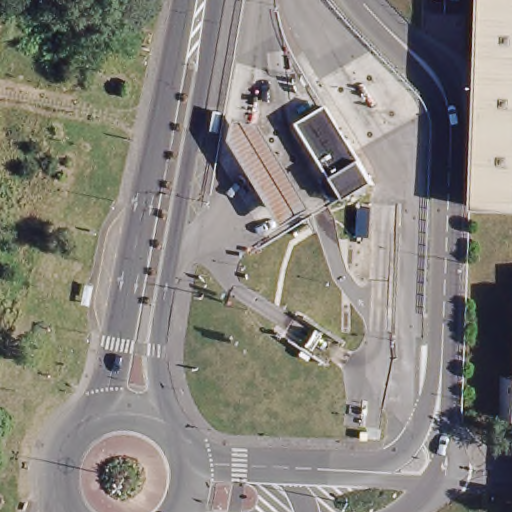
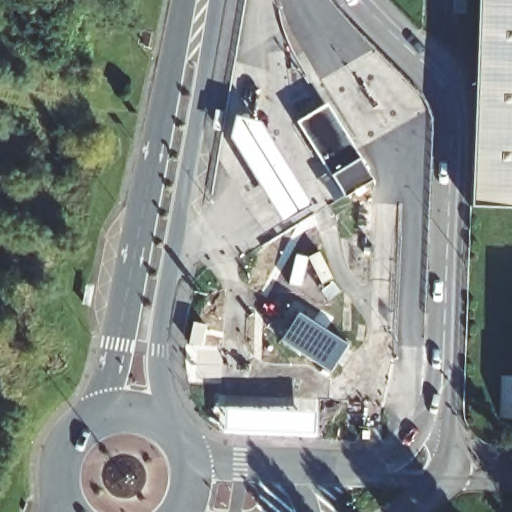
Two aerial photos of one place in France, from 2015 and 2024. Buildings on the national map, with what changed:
unchanged [(480,91),(482,0),(512,0),(512,204),(477,204),(480,91)]
unchanged [(294,194),(280,202),(245,144),(230,120),(230,107),(244,111),(250,121),(294,194)]
unchanged [(364,165),(337,182),(305,129),(332,114),(364,165)]
unchanged [(492,369),(509,369),(511,263),(512,263),(512,411),(491,411),(492,369)]
new [(305,316),(343,340),(328,364),(290,339),(305,316)]

